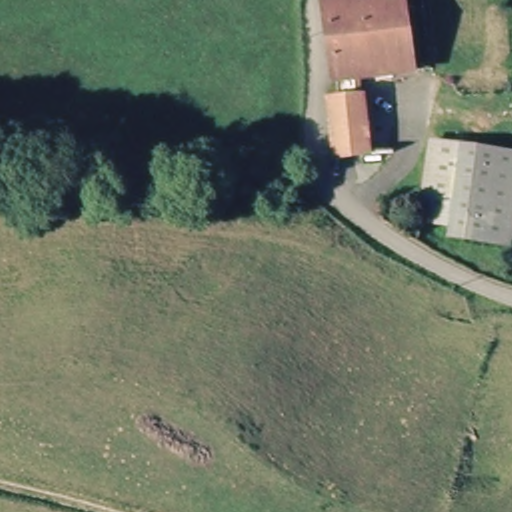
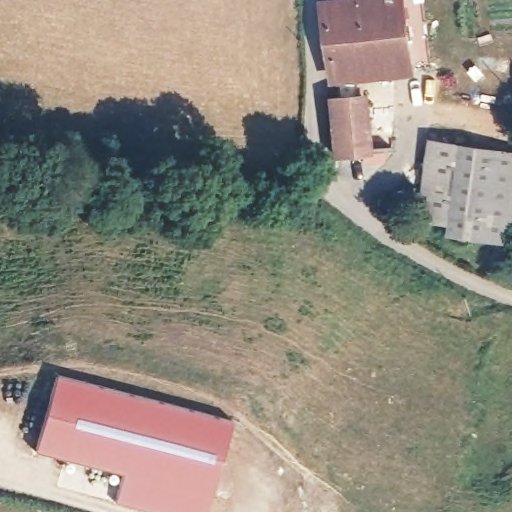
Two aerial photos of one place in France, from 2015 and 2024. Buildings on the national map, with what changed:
unchanged [(339,76),(333,6),(405,1),(410,70),(339,76)]
unchanged [(326,100),(335,98),(359,97),(359,111),(379,111),(380,153),(330,156),(326,100)]
unchanged [(462,202),(430,196),(441,141),(512,154),(512,232),(457,222),(462,202)]
new [(232,419),(208,512),(155,512),(116,502),(124,473),(36,449),(56,374),(232,419)]

